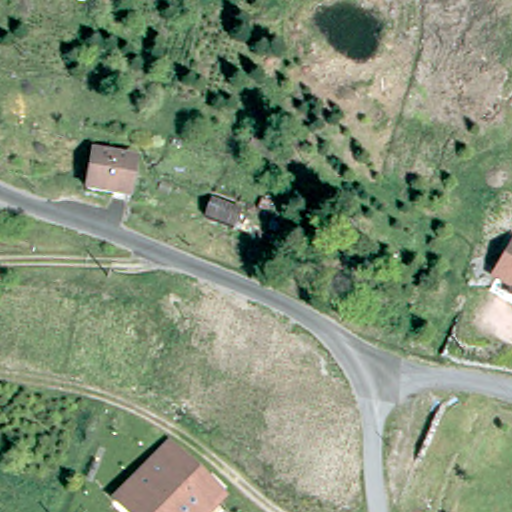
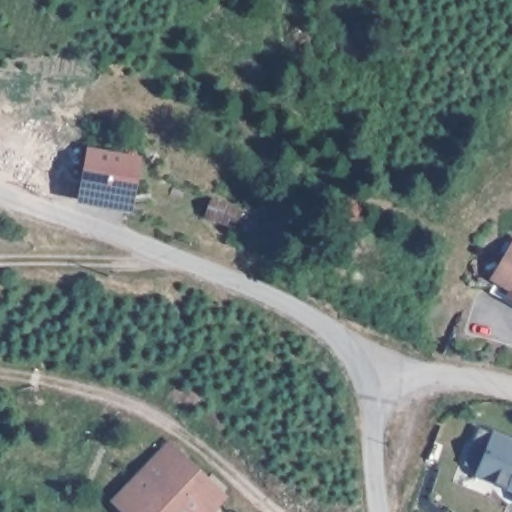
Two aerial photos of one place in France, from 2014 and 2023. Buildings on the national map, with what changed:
unchanged [(134,160),(128,199),(88,193),(95,154),(134,160)]
unchanged [(242,206),(236,225),(205,215),(211,196),(242,206)]
unchanged [(508,300),(488,288),(512,250),(512,298),(510,297),(508,300)]
new [(481,469),(490,448),(476,443),(484,423),(512,435),(512,485),(505,482),(500,479),(482,472),(481,469)]
unchanged [(221,499),(215,506),(209,512),(119,512),(112,505),(134,483),(166,450),(185,467),(221,499)]

